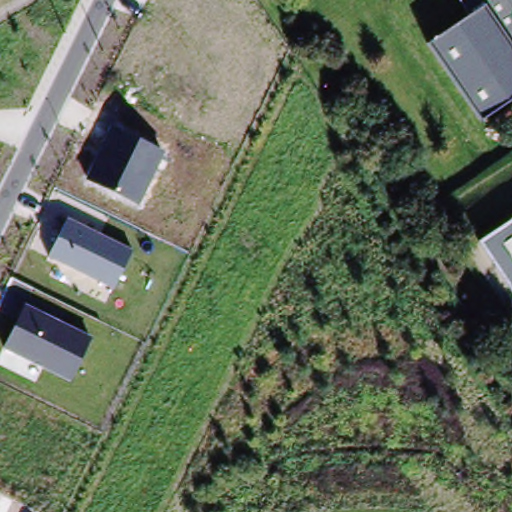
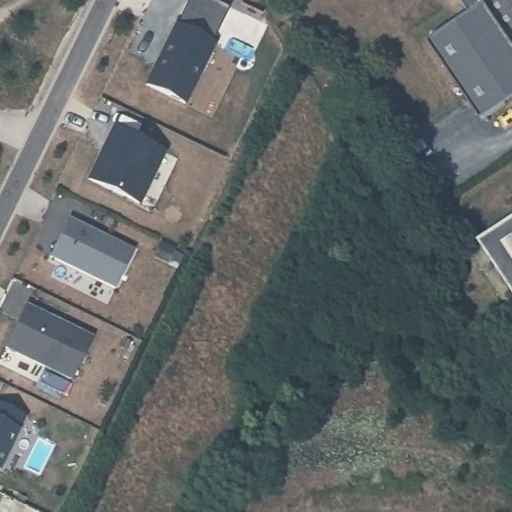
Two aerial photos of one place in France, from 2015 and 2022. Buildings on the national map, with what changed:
unchanged [(480,122),(425,40),(483,2),(482,0),(512,0),(512,101),(480,122)]
new [(185,105),(147,86),(175,27),(214,45),(185,105)]
unchanged [(139,205),(87,180),(111,129),(165,151),(139,205)]
unchanged [(114,290),(47,256),(67,217),(133,249),(114,290)]
unchanged [(478,242),(512,221),(512,295),(478,242)]
unchanged [(71,382),(2,347),(23,303),(92,336),(71,382)]
new [(0,469),(0,406),(25,418),(0,469)]

